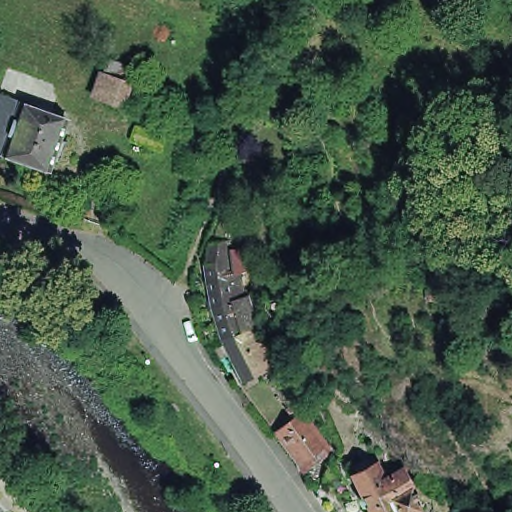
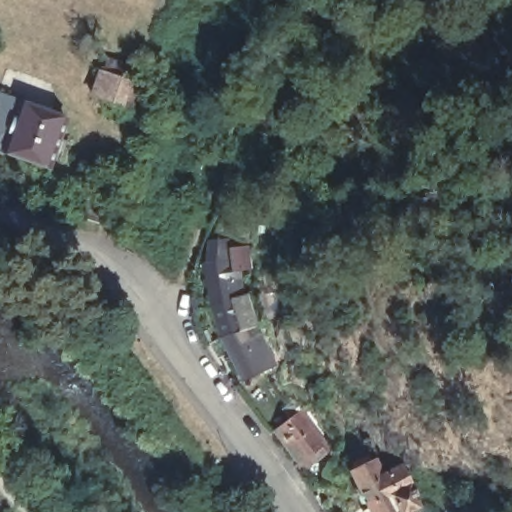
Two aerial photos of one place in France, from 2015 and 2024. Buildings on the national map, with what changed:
unchanged [(142,112),(127,107),(87,92),(95,68),(137,84),(135,89),(148,94),(142,112)]
unchanged [(8,157),(0,154),(0,100),(23,109),(8,157)]
unchanged [(52,172),(8,157),(23,109),(67,122),(52,172)]
unchanged [(160,149),(141,142),(133,140),(137,126),(145,129),(165,135),(160,149)]
unchanged [(247,381),(227,337),(217,306),(210,262),(212,262),(214,241),(232,239),(235,250),(252,246),(255,266),(238,269),(243,292),(241,299),(248,331),(260,327),(278,365),(247,381)]
unchanged [(326,444),(298,465),(273,432),(300,411),(326,444)]
unchanged [(370,461),(378,477),(384,475),(397,467),(417,507),(409,512),(367,512),(347,472),(370,461)]

